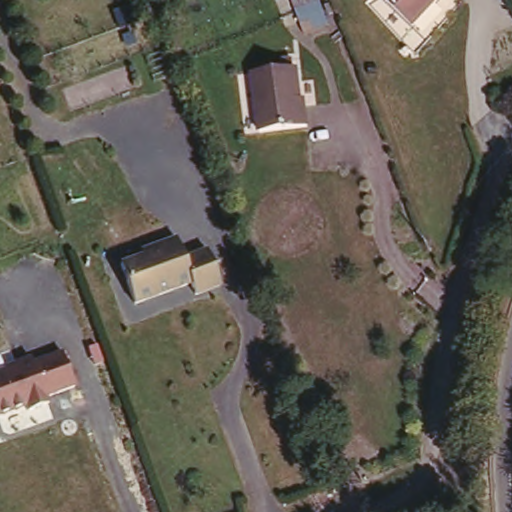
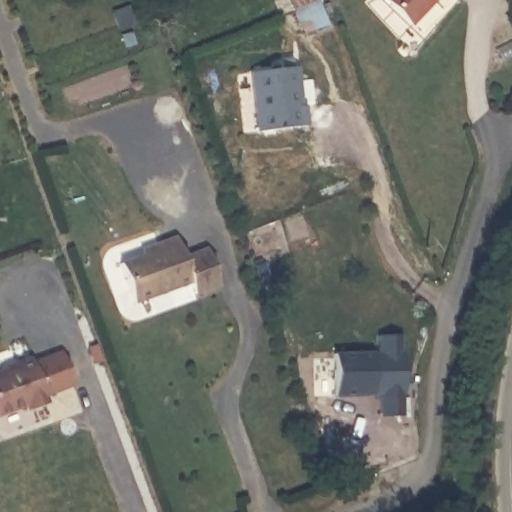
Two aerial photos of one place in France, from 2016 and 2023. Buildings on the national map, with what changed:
unchanged [(145,3),(143,0),(153,0),(145,3)]
unchanged [(381,0),(445,0),(409,35),(380,1),(381,0)]
unchanged [(326,6),(330,19),(309,29),(304,15),(326,6)]
unchanged [(307,135),(277,138),(277,147),(267,148),(267,140),(263,140),(258,94),(254,94),(252,74),(300,68),(307,135)]
unchanged [(145,252),(143,247),(179,234),(187,255),(208,248),(221,285),(200,292),(194,280),(140,297),(126,259),(145,252)]
new [(379,396),(334,397),(335,351),(377,352),(376,336),(403,335),(404,416),(379,417),(379,396)]
unchanged [(8,364),(35,354),(36,357),(64,348),(76,383),(48,392),(51,402),(28,411),(25,406),(1,413),(0,410),(0,370),(9,367),(8,364)]

